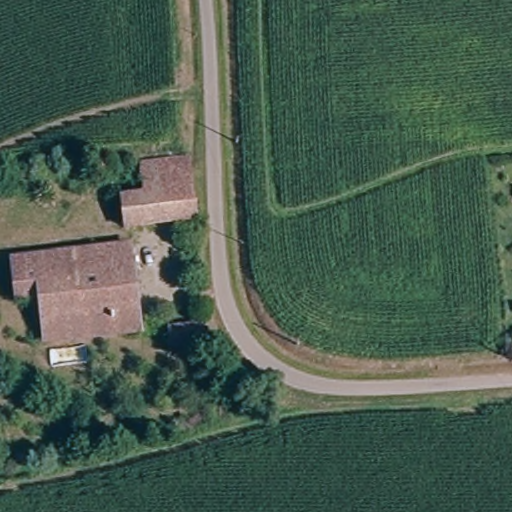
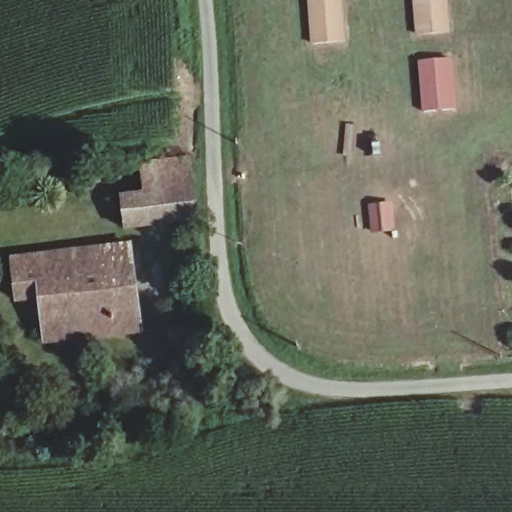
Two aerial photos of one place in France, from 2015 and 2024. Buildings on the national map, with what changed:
new [(309,47),(306,0),(342,0),(345,44),(309,47)]
new [(414,37),(412,0),(447,0),(450,33),(414,37)]
new [(451,57),(456,110),(420,112),(416,60),(451,57)]
unchanged [(189,158),(195,220),(123,227),(120,196),(146,194),(143,163),(189,158)]
unchanged [(130,246),(140,331),(46,342),(41,297),(17,300),(13,260),(130,246)]
unchanged [(205,345),(170,348),(168,327),(203,325),(205,345)]

